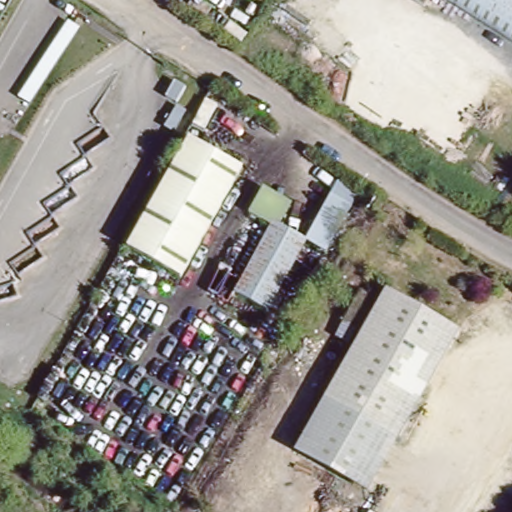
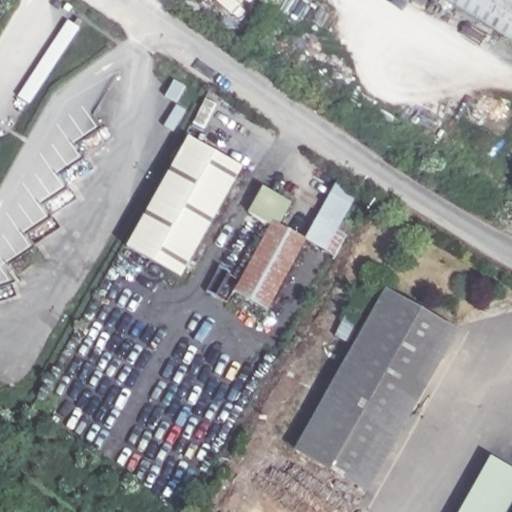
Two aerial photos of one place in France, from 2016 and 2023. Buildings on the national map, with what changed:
unchanged [(426,3),(422,0),(427,0),(426,3)]
unchanged [(453,0),(512,0),(512,37),(453,0)]
unchanged [(196,142),(243,169),(184,279),(133,249),(196,142)]
unchanged [(333,194),(352,207),(329,250),(309,239),(333,194)]
unchanged [(263,197),(290,210),(280,229),(253,215),(263,197)]
unchanged [(274,229),(306,246),(270,311),(239,294),(274,229)]
unchanged [(325,397),(384,289),(455,328),(396,436),(325,397)]
unchanged [(368,489),(296,450),(325,397),(396,436),(368,489)]
new [(512,468),(512,501),(506,512),(460,512),(489,457),(512,468)]

